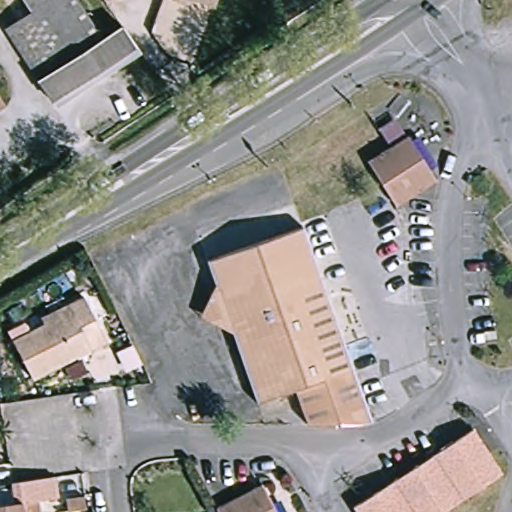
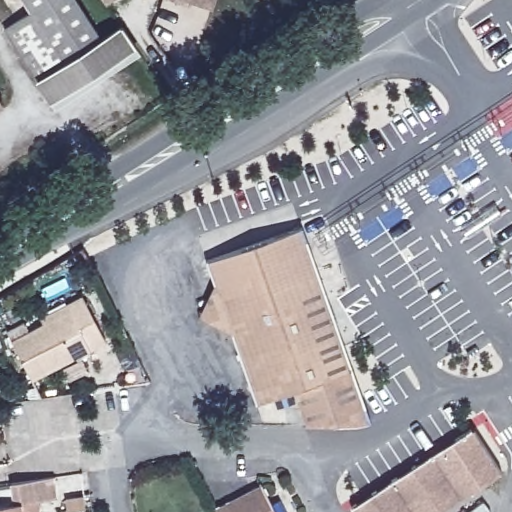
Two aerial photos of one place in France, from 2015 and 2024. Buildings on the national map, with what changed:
unchanged [(100,40),(120,27),(134,49),(61,98),(38,63),(15,28),(37,14),(27,0),(73,0),(100,40)]
unchanged [(104,4),(101,0),(109,0),(104,4)]
unchanged [(177,2),(170,0),(214,0),(211,9),(192,2),(190,7),(177,2)]
unchanged [(0,104),(0,102),(1,103),(0,104)]
demolished [(406,137),(434,181),(394,206),(367,163),(366,162),(406,136),(406,137)]
unchanged [(342,341),(370,422),(366,423),(360,425),(352,426),(344,426),(306,426),(295,391),(274,397),(257,403),(231,333),(197,317),(213,284),(205,261),(301,227),(316,270),(329,306),(342,341)]
unchanged [(8,341),(42,324),(39,317),(65,305),(80,297),(102,342),(27,379),(8,341)]
unchanged [(467,427),(496,471),(459,496),(430,452),(467,427)]
unchanged [(435,512),(411,512),(390,480),(430,452),(459,496),(435,512)]
unchanged [(4,482),(47,476),(50,495),(30,498),(32,512),(0,512),(0,503),(7,502),(4,482)]
unchanged [(355,512),(351,506),(390,480),(411,512),(355,512)]
unchanged [(276,512),(216,512),(264,487),(276,512)]
unchanged [(62,495),(78,492),(79,503),(63,506),(62,495)]

